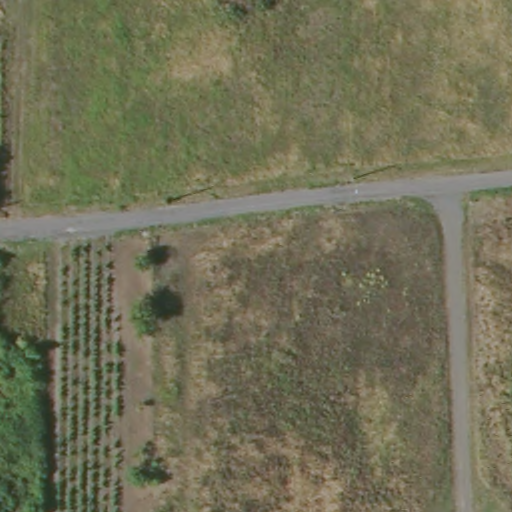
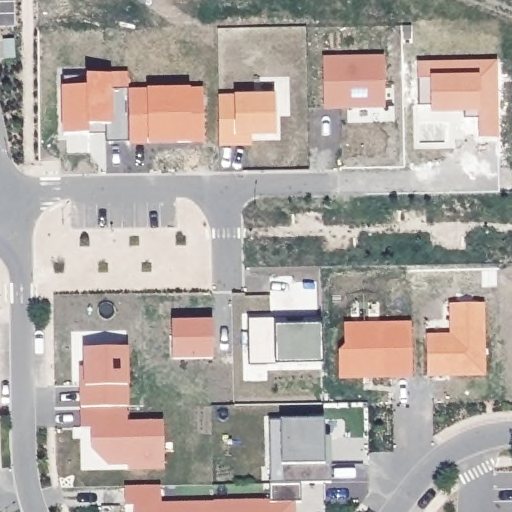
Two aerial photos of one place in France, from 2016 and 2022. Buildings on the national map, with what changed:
new [(387,57),(388,108),(326,108),(326,57),(387,57)]
new [(501,137),(480,138),(479,110),(432,113),(430,78),(418,79),(418,59),(499,60),(501,137)]
new [(107,136),(65,137),(64,90),(64,75),(88,75),(129,75),(130,145),(107,145),(107,136)]
new [(204,89),(204,108),(205,145),(130,145),(129,90),(191,90),(204,89)]
new [(253,147),(237,147),(220,147),(219,97),(277,97),(277,135),(238,136),(253,136),(253,147)]
new [(486,378),(429,378),(429,339),(454,339),(453,308),(484,308),(486,378)]
new [(249,359),(249,321),(323,320),(323,367),(268,368),(249,368),(249,359)]
new [(213,324),(213,361),(173,361),(173,325),(213,324)]
new [(413,379),(339,380),(339,354),(345,348),(345,328),(412,327),(413,379)]
new [(83,409),(82,387),(86,387),(85,351),(128,351),(128,408),(83,409)]
new [(127,408),(128,423),(163,422),(164,470),(128,471),(128,465),(106,466),(92,451),(93,428),(79,428),(81,409),(127,408)]
new [(281,420),(324,419),(324,438),(331,439),(332,465),(332,483),(269,484),(269,420),(281,420)]
new [(271,503),(271,485),(303,484),(303,504),(291,504),(291,512),(214,512),(214,504),(271,503)]
new [(126,507),(125,487),(161,487),(161,505),(214,504),(214,512),(134,512),(134,507),(126,507)]

